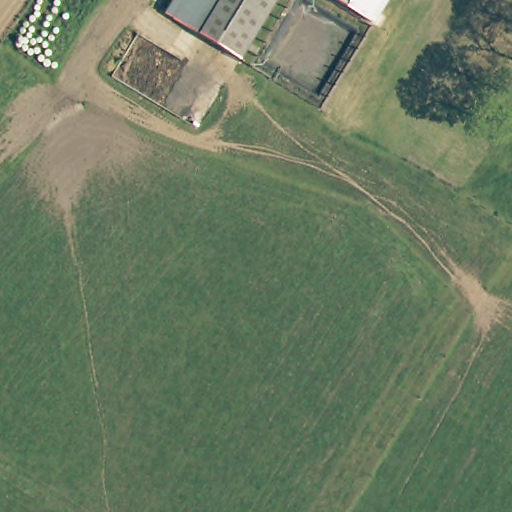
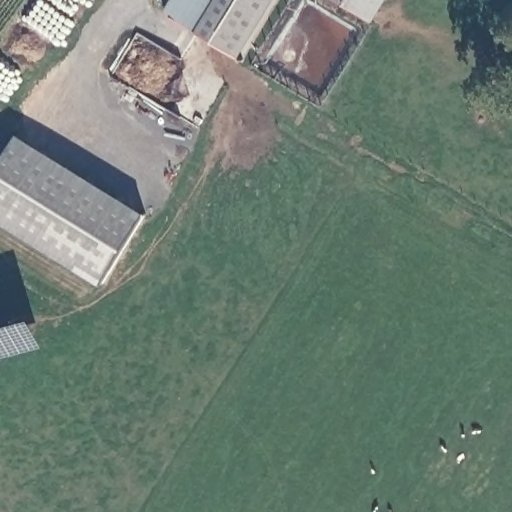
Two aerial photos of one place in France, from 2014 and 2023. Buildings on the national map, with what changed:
unchanged [(181,0),(260,0),(230,49),(174,11),(181,0)]
unchanged [(372,22),(334,0),(386,0),(372,22)]
new [(0,221),(0,165),(19,134),(146,211),(101,283),(0,221)]

